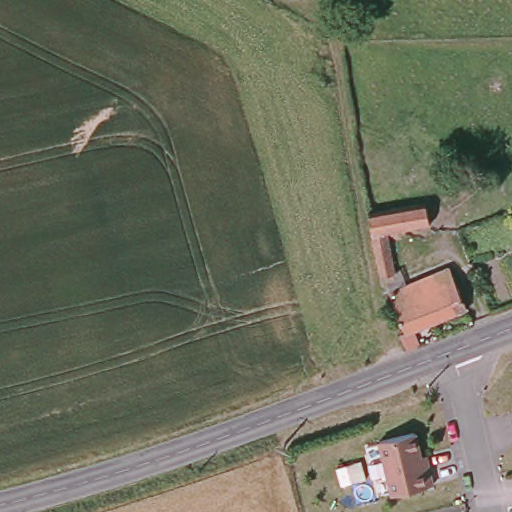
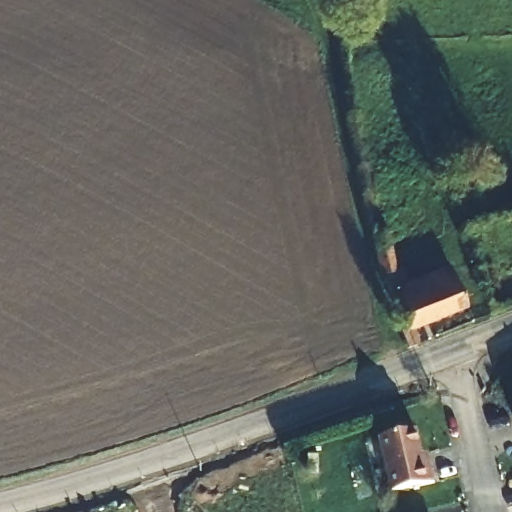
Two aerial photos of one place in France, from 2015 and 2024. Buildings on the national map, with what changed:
unchanged [(397,229),(397,234),(387,236),(394,280),(385,283),(381,285),(364,191),(385,187),(386,196),(422,189),(425,202),(429,224),(397,229)]
unchanged [(404,348),(399,333),(402,331),(388,291),(449,269),(464,308),(410,329),(415,344),(404,348)]
unchanged [(512,414),(512,425),(507,419),(512,414)]
unchanged [(375,439),(410,431),(419,469),(425,467),(429,483),(387,493),(375,439)]

